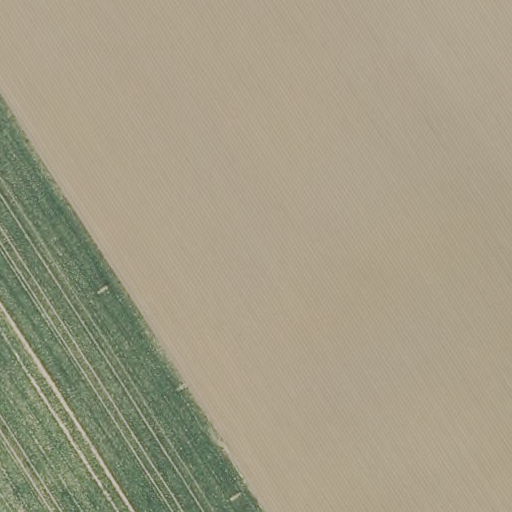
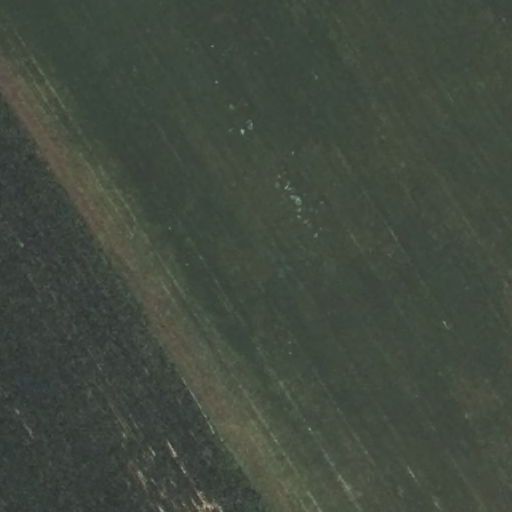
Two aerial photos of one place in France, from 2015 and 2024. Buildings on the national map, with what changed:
[]

